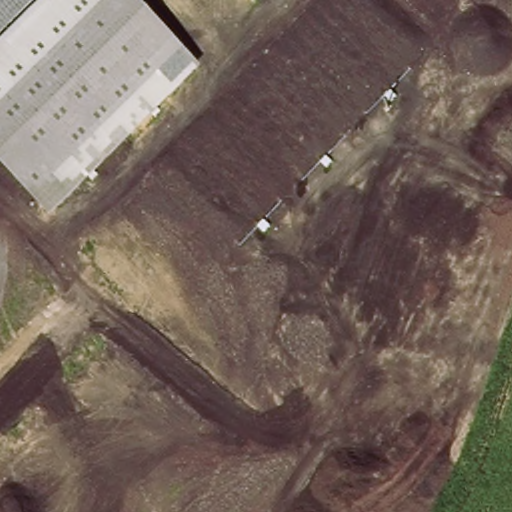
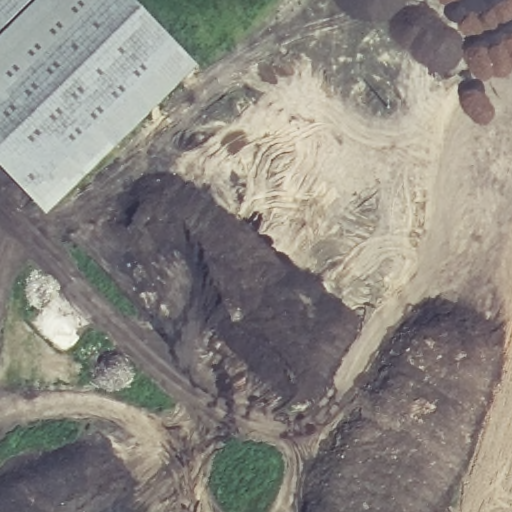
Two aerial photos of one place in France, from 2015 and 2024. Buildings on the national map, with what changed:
unchanged [(62,0),(0,58),(0,0),(62,0)]
unchanged [(130,0),(197,69),(46,219),(0,172),(0,58),(62,0),(130,0)]

